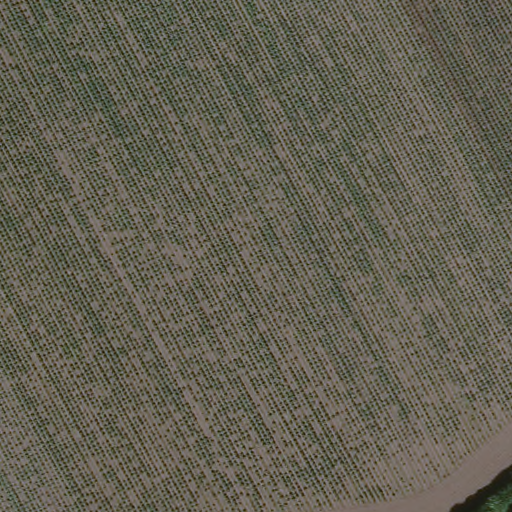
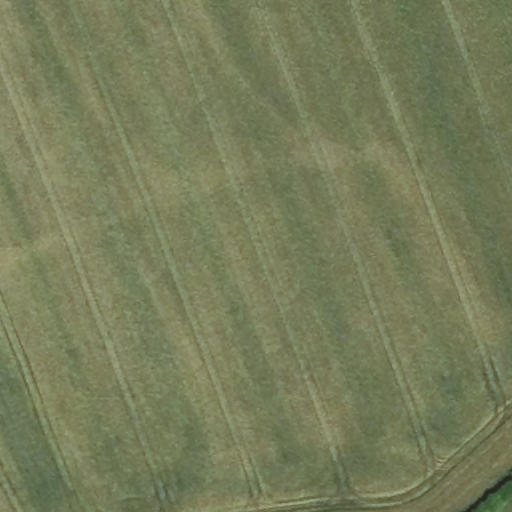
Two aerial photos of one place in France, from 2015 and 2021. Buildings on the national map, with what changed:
[]

